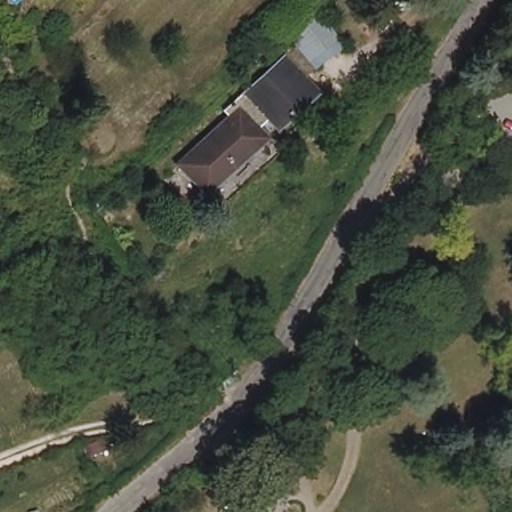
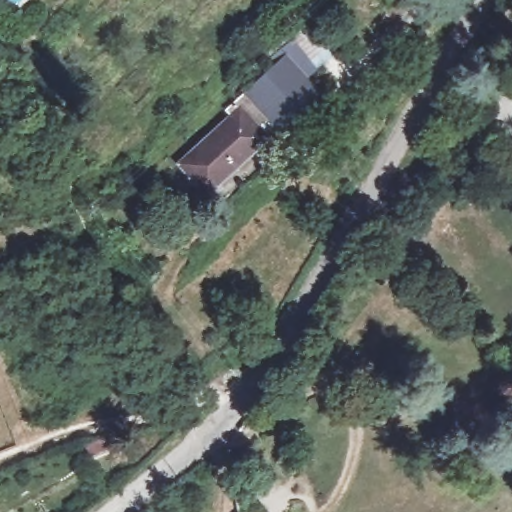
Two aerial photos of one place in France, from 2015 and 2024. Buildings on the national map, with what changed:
unchanged [(214,197),(189,170),(240,121),(235,117),(286,71),(285,69),(307,51),(327,77),(317,86),(330,102),(318,113),(311,106),(285,129),(272,142),(214,197)]

